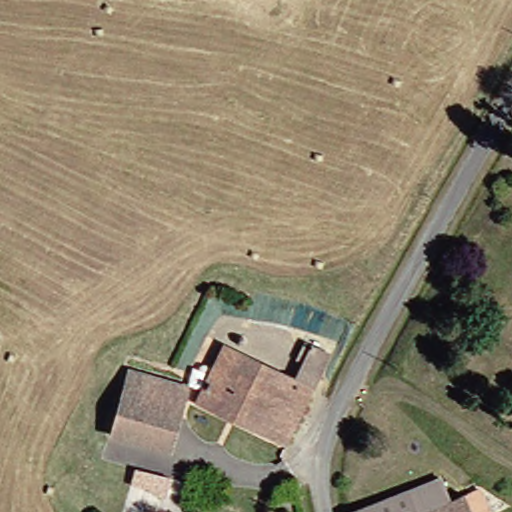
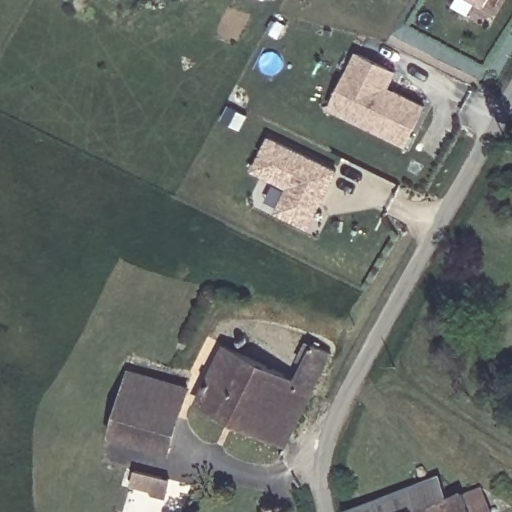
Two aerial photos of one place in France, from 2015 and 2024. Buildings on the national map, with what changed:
new [(471,0),(484,0),(480,5),(471,0)]
new [(354,54),(391,73),(383,89),(390,92),(420,108),(401,144),(341,114),(327,107),(336,88),(354,54)]
new [(300,224),(275,212),(288,187),(252,169),(268,138),(335,172),(319,203),(307,228),(300,224)]
unchanged [(285,384),(301,348),(319,357),(277,449),(185,404),(211,352),(285,384)]
unchanged [(176,387),(160,450),(101,432),(119,371),(176,387)]
unchanged [(158,475),(156,490),(125,484),(127,472),(158,475)]
unchanged [(336,511),(424,478),(435,502),(413,512),(336,512),(336,511)]
unchanged [(435,502),(452,494),(461,512),(413,512),(435,502)]

